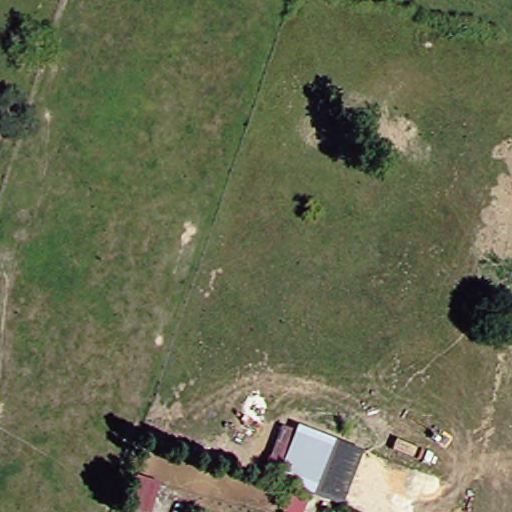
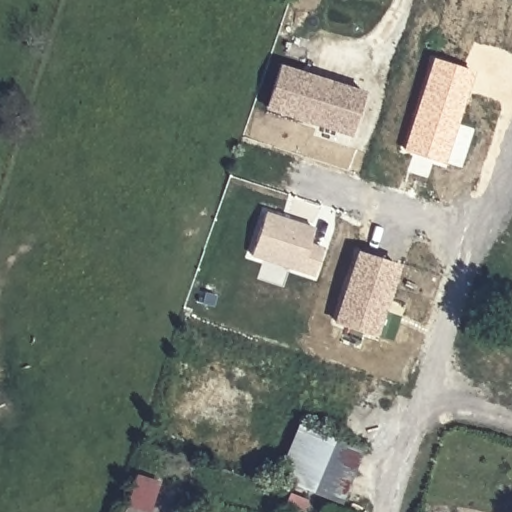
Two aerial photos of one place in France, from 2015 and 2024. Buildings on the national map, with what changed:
new [(433,58),(474,71),(446,165),(404,151),(433,58)]
new [(282,66),(367,93),(354,135),(269,108),(282,66)]
new [(267,216),(315,231),(310,246),(324,251),(316,278),(253,258),(267,216)]
new [(379,338),(334,324),(358,250),(403,265),(379,338)]
new [(363,450),(342,504),(277,476),(281,467),(268,460),(283,428),(294,433),(298,425),(363,450)]
new [(289,495),(313,501),(310,512),(285,512),(289,495)]

